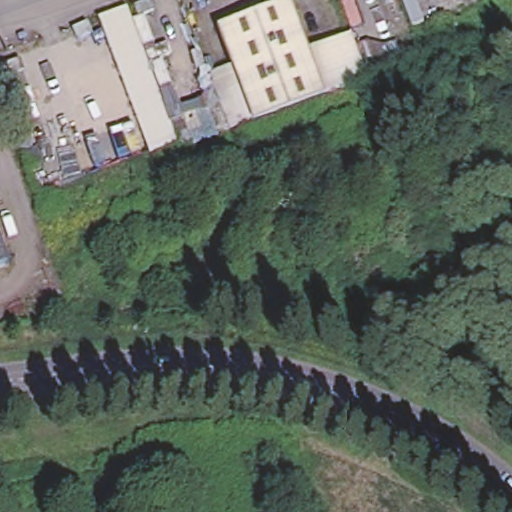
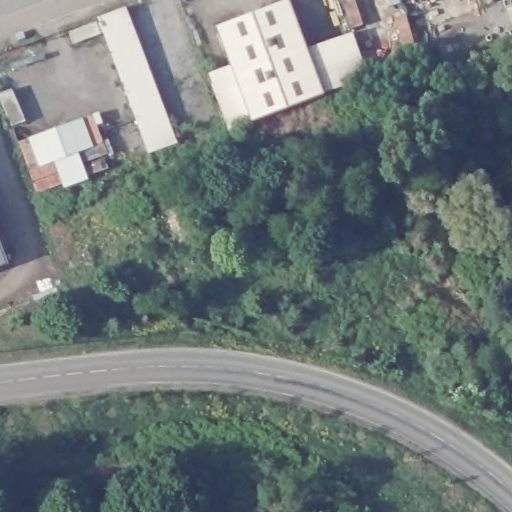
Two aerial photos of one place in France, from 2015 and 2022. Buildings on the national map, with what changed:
unchanged [(370,78),(322,96),(254,122),(215,135),(195,80),(230,64),(215,28),(288,0),(305,47),(352,33),(370,78)]
unchanged [(140,147),(95,12),(124,3),(173,136),(140,147)]
new [(104,122),(97,124),(103,139),(110,138),(115,154),(110,155),(112,160),(107,161),(109,168),(87,174),(88,179),(65,188),(62,183),(37,193),(19,139),(99,111),(104,122)]
new [(10,264),(0,267),(0,238),(10,264)]

